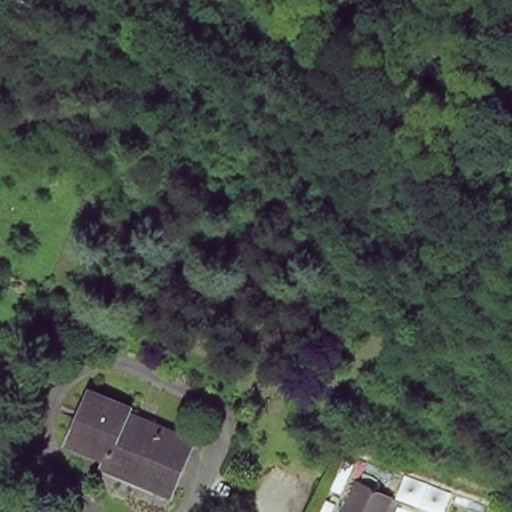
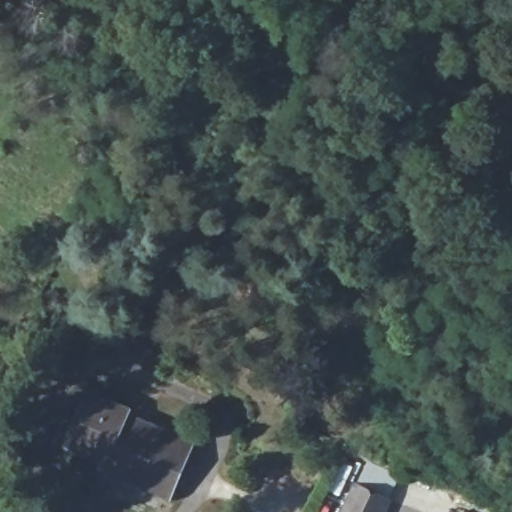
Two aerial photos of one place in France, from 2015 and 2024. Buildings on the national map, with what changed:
unchanged [(150,488),(113,472),(109,470),(100,467),(103,460),(65,443),(87,391),(128,408),(125,416),(159,431),(190,445),(175,482),(170,496),(150,488)]
unchanged [(357,482),(386,495),(391,498),(384,512),(343,512),(357,482)]

